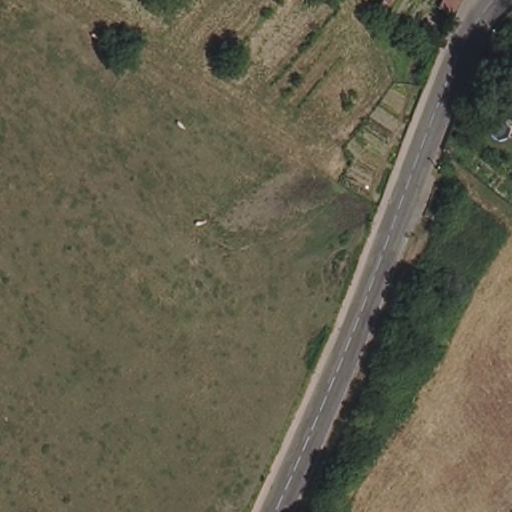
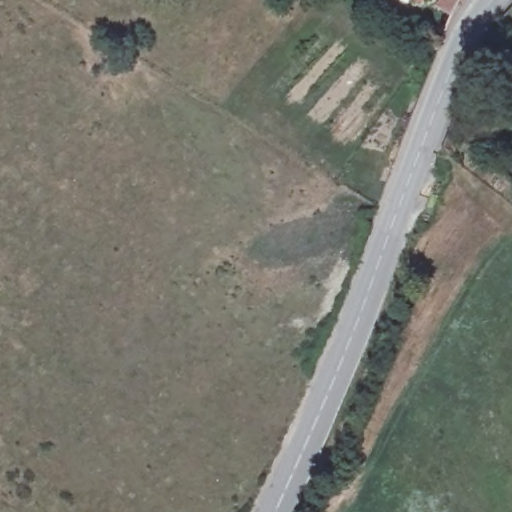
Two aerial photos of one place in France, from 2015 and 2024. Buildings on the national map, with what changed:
unchanged [(405,0),(409,0),(407,2),(405,0)]

